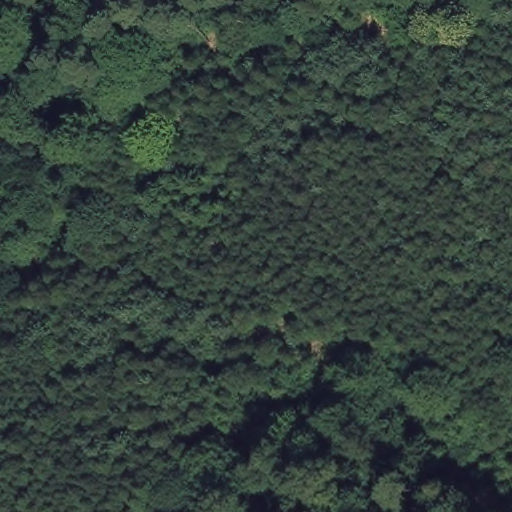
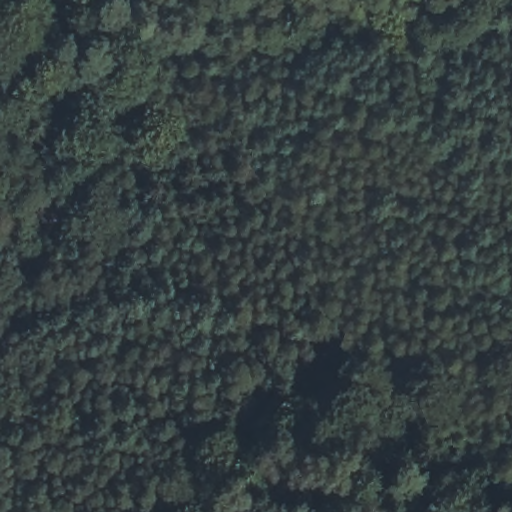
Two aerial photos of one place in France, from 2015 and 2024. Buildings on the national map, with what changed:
[]

